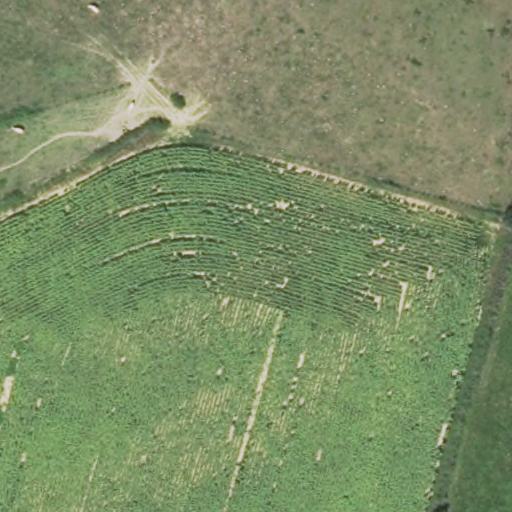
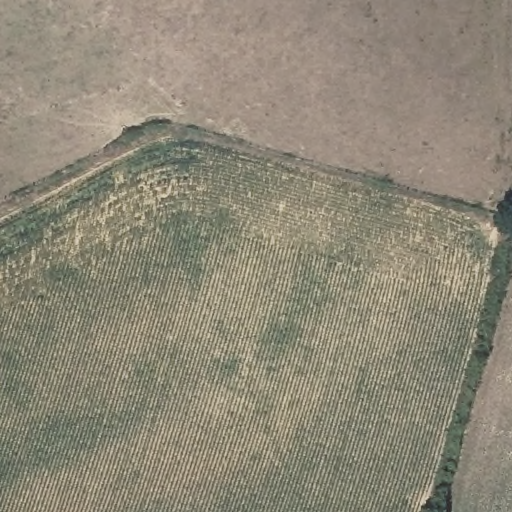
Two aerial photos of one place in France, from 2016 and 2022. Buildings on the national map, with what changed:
unchanged [(1,75),(0,91),(0,90),(0,75),(1,75)]

